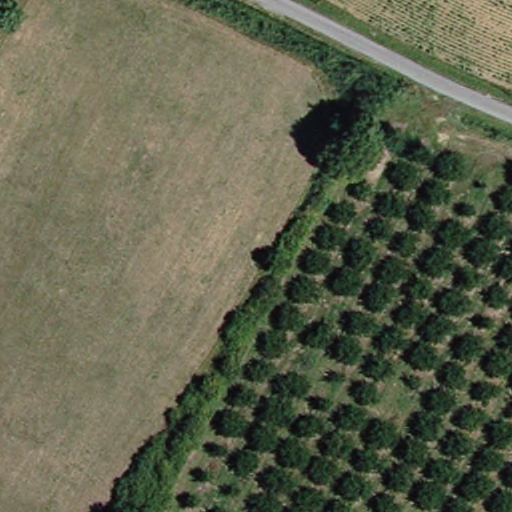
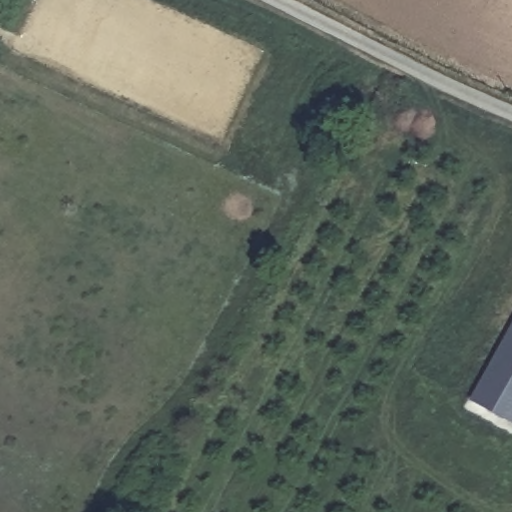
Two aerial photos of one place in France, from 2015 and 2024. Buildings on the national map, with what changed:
new [(512,329),(512,422),(473,401),(512,329)]

